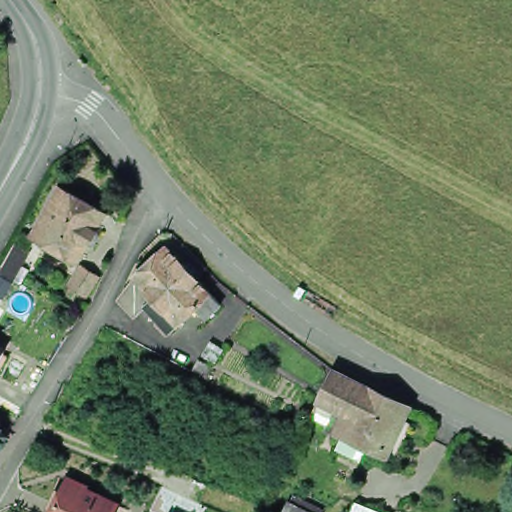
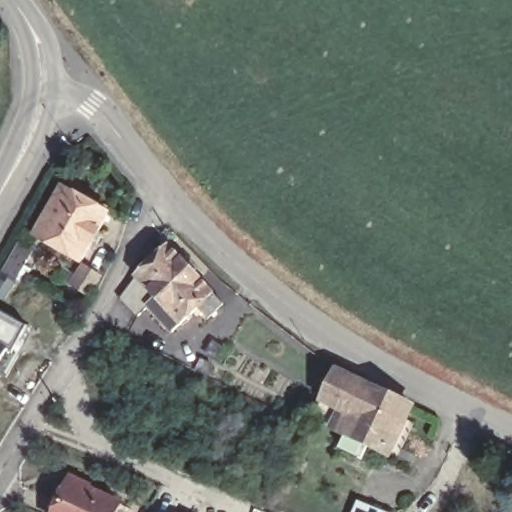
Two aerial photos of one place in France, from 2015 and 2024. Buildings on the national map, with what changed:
unchanged [(109,206),(97,228),(102,231),(99,238),(94,235),(82,255),(36,229),(64,180),(109,206)]
unchanged [(169,244),(189,265),(194,260),(200,267),(195,272),(224,303),(210,317),(200,307),(175,331),(150,305),(139,315),(122,294),(122,293),(139,273),(169,244)]
unchanged [(39,258),(24,286),(17,282),(2,274),(17,246),(32,254),(39,258)]
unchanged [(101,268),(87,290),(71,279),(85,256),(101,268)]
unchanged [(12,347),(0,368),(0,340),(12,347)]
unchanged [(213,370),(209,379),(197,374),(202,365),(213,370)]
unchanged [(359,447),(355,455),(336,447),(342,432),(334,428),(335,426),(312,416),(322,393),(332,368),(365,384),(407,404),(401,417),(410,422),(395,456),(385,452),(367,443),(364,449),(359,447)]
unchanged [(55,512),(70,482),(72,478),(92,488),(90,493),(120,507),(117,512),(55,512)]
unchanged [(290,496),(320,510),(320,512),(282,512),(285,506),(290,496)]
unchanged [(387,512),(357,512),(362,501),(387,512)]

